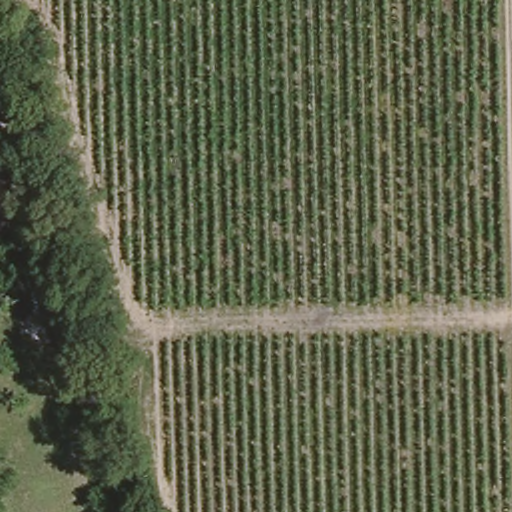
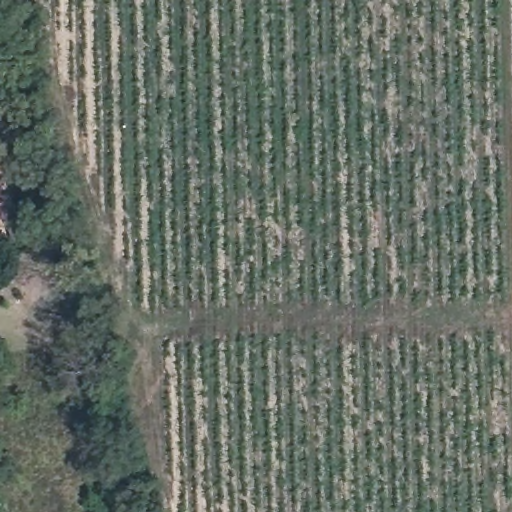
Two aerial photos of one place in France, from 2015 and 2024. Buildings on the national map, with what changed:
unchanged [(0,231),(0,173),(16,225),(23,248),(14,251),(6,229),(0,231)]
unchanged [(41,292),(66,285),(80,336),(56,342),(41,292)]

